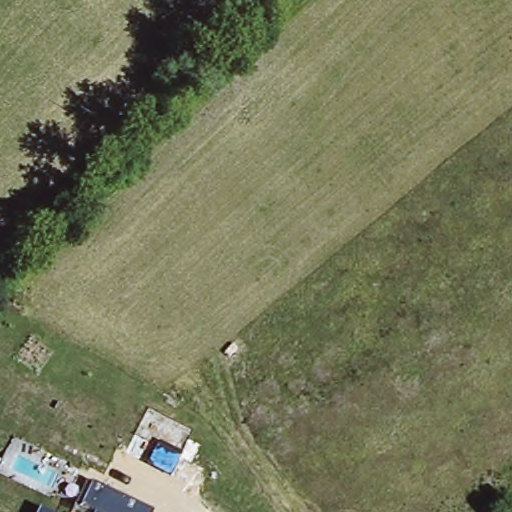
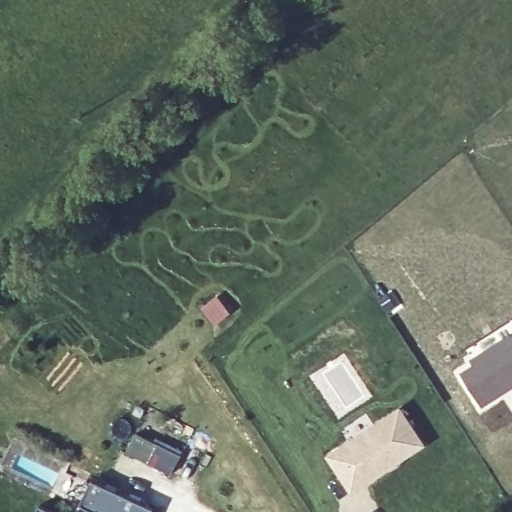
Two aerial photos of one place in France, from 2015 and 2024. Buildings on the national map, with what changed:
new [(470,362),(466,357),(507,329),(512,328),(512,389),(480,410),(456,371),(470,362)]
new [(327,455),(401,408),(426,446),(352,492),(327,455)]
unchanged [(186,448),(175,474),(147,462),(158,437),(186,448)]
unchanged [(154,512),(79,512),(82,506),(76,504),(88,476),(156,508),(154,512)]
unchanged [(56,512),(38,512),(42,505),(56,512)]

